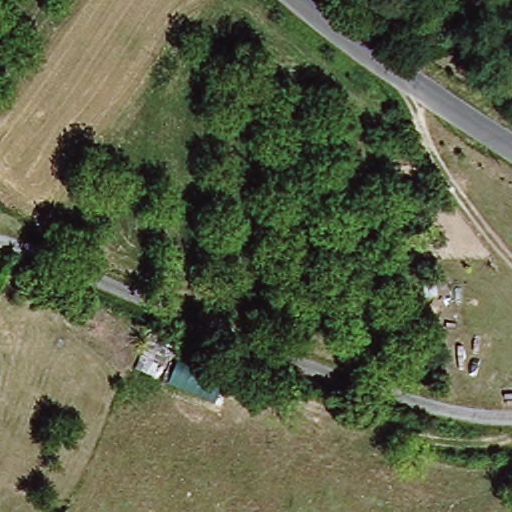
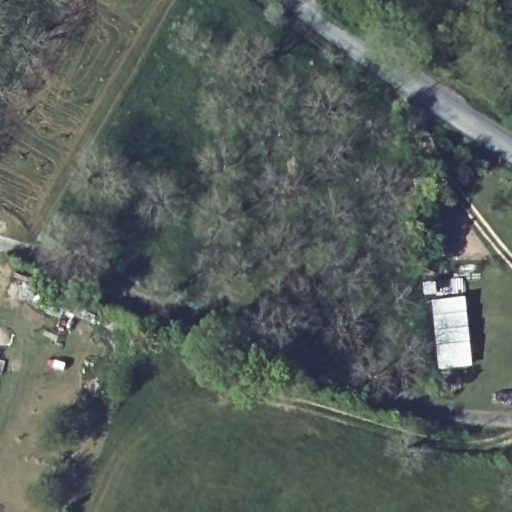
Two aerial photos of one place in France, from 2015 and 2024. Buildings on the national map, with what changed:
new [(465,295),(472,366),(438,369),(431,300),(465,295)]

